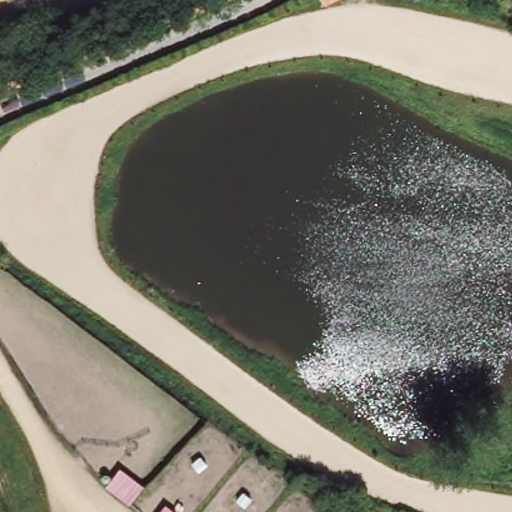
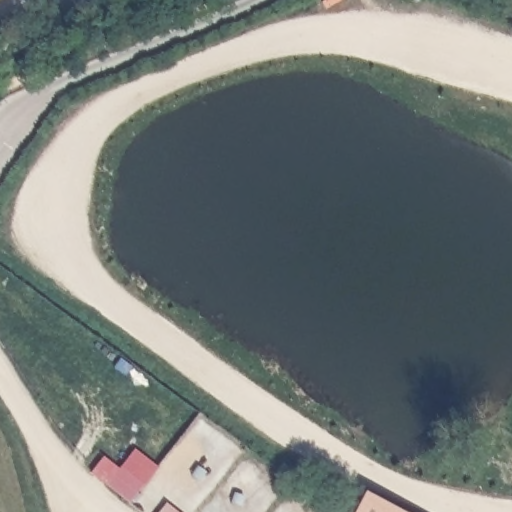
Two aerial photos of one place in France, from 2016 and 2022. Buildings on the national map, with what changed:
unchanged [(106,486),(120,467),(144,485),(130,504),(106,486)]
new [(403,512),(353,512),(364,491),(403,512)]
unchanged [(177,512),(159,512),(165,503),(177,512)]

